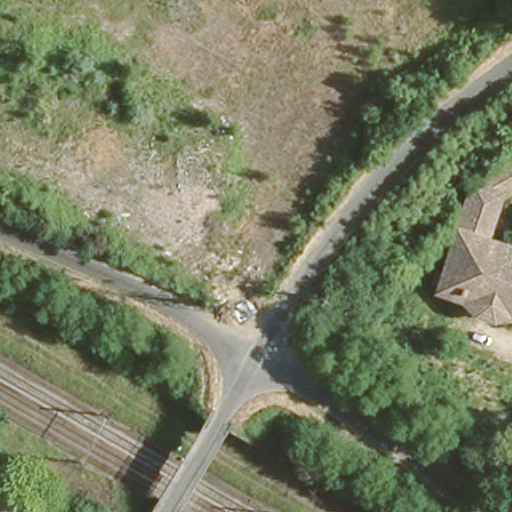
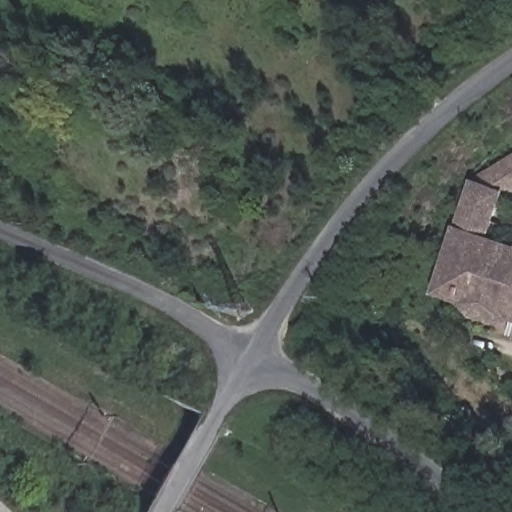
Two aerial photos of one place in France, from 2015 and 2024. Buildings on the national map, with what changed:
unchanged [(490,240),(512,246),(512,321),(496,326),(474,320),(461,305),(434,296),(471,182),(512,157),(512,192),(504,195),(490,240)]

